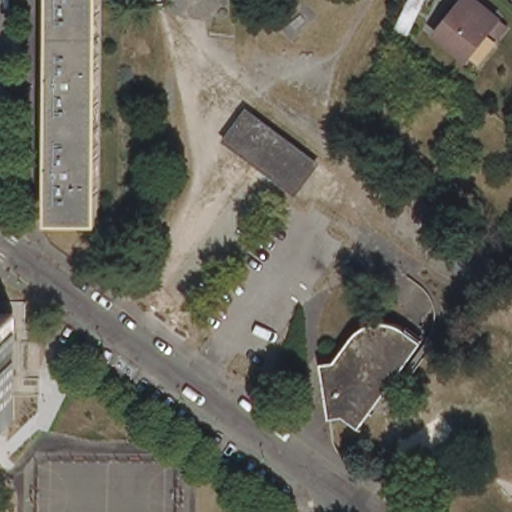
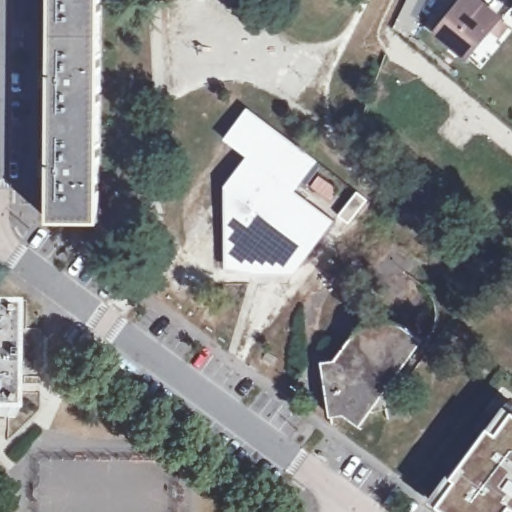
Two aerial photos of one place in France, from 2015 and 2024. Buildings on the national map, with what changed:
unchanged [(97,218),(51,218),(51,174),(42,175),(42,158),(51,159),(52,85),(43,85),(43,69),(52,70),(52,0),(99,0),(97,218)]
unchanged [(498,34),(490,27),(465,56),(435,31),(460,0),(478,0),(499,16),(497,19),(505,25),(498,34)]
unchanged [(224,138),(248,107),(317,160),(293,190),(224,138)]
new [(249,156),(293,190),(334,221),(296,272),(250,271),(226,267),(226,187),(249,156)]
demolished [(358,194),(379,167),(436,214),(453,226),(431,254),(358,194)]
unchanged [(15,415),(0,415),(0,309),(15,310),(15,415)]
unchanged [(344,411),(332,413),(323,360),(336,357),(359,330),(383,319),(404,325),(424,339),(361,423),(344,411)]
new [(440,512),(433,506),(509,408),(512,411),(512,512),(440,512)]

